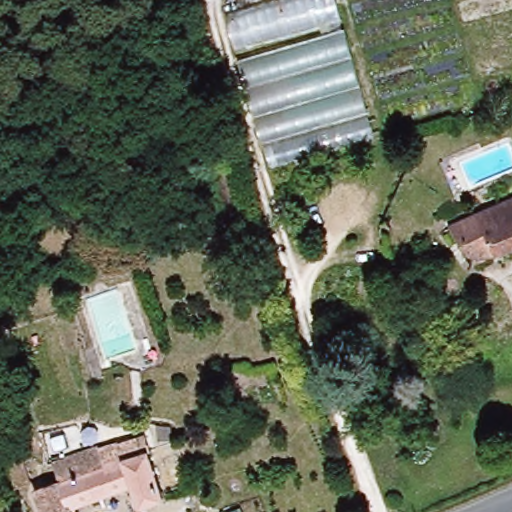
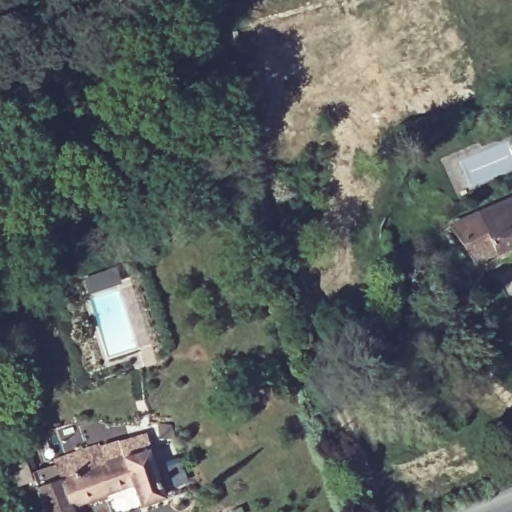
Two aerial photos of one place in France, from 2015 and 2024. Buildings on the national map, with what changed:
demolished [(343,27),(374,135),(272,165),(242,60),(343,27)]
unchanged [(477,262),(451,222),(512,196),(512,248),(477,262)]
unchanged [(219,374),(215,357),(229,355),(232,373),(219,374)]
unchanged [(33,480),(16,484),(6,451),(20,446),(27,465),(33,480)]
unchanged [(131,485),(74,505),(76,512),(49,512),(39,485),(148,449),(165,497),(140,506),(131,485)]

